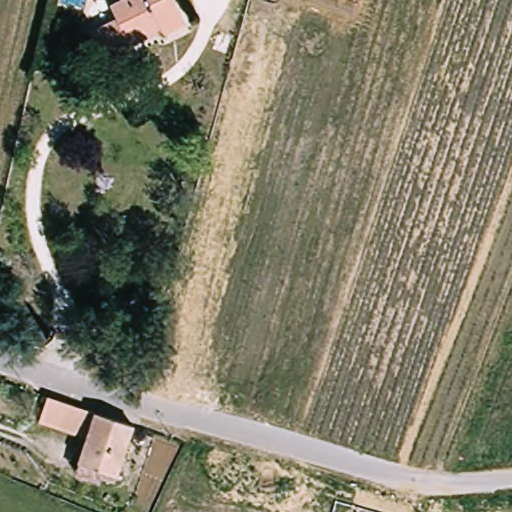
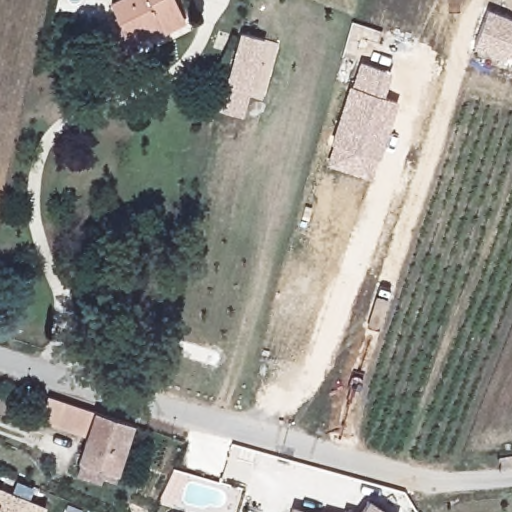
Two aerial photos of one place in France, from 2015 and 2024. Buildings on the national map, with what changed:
unchanged [(115,3),(120,0),(175,0),(186,24),(164,35),(157,27),(129,40),(134,55),(107,66),(101,53),(93,34),(109,25),(118,22),(115,3)]
new [(504,60),(473,47),(487,9),(512,18),(512,55),(507,54),(504,60)]
new [(218,110),(241,32),(265,39),(243,116),(218,110)]
new [(380,159),(377,157),(370,179),(327,164),(333,145),(331,144),(349,85),(352,86),(360,61),(391,72),(384,95),(397,100),(380,159)]
unchanged [(84,435),(39,421),(48,395),(92,411),(84,435)]
unchanged [(130,424),(113,476),(74,463),(84,435),(92,411),(130,424)]
new [(46,505),(43,512),(0,512),(0,486),(46,505)]
new [(368,500),(386,512),(360,512),(368,500)]
demolished [(331,504),(357,512),(329,512),(331,504)]
new [(293,508),(309,512),(291,512),(293,508)]
new [(344,511),(348,512),(344,512),(344,511)]

